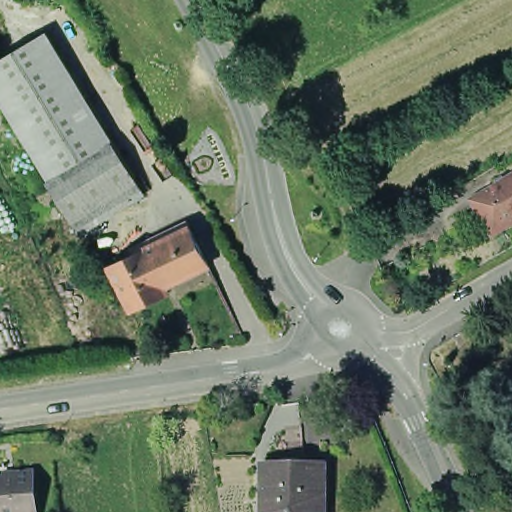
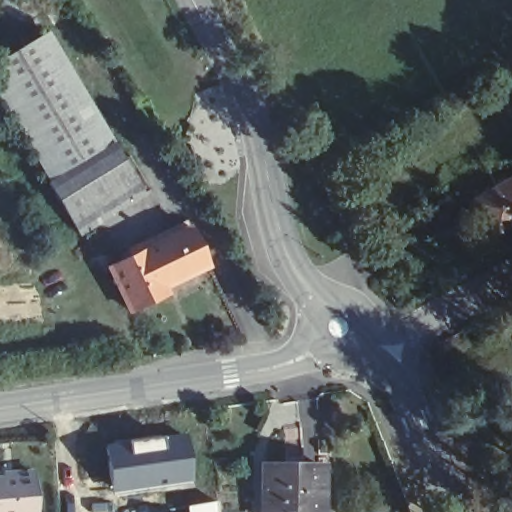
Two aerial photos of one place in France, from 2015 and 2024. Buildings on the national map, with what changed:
unchanged [(44,174),(0,104),(0,55),(5,53),(49,29),(111,133),(44,174)]
unchanged [(5,53),(0,55),(0,45),(5,53)]
unchanged [(44,174),(111,133),(149,190),(80,234),(44,174)]
unchanged [(478,203),(505,188),(502,182),(509,178),(512,183),(512,231),(506,234),(498,238),(488,220),(478,203)]
unchanged [(208,257),(192,265),(163,279),(168,288),(132,306),(109,261),(130,250),(171,229),(189,220),(208,257)]
unchanged [(449,403),(457,418),(449,422),(441,408),(449,403)]
new [(186,432),(193,482),(112,494),(103,443),(186,432)]
unchanged [(267,512),(269,462),(330,464),(328,512),(267,512)]
unchanged [(0,512),(0,476),(6,475),(6,480),(12,479),(11,471),(11,470),(43,469),(45,512),(0,512)]
new [(216,499),(217,512),(187,512),(186,505),(216,499)]

